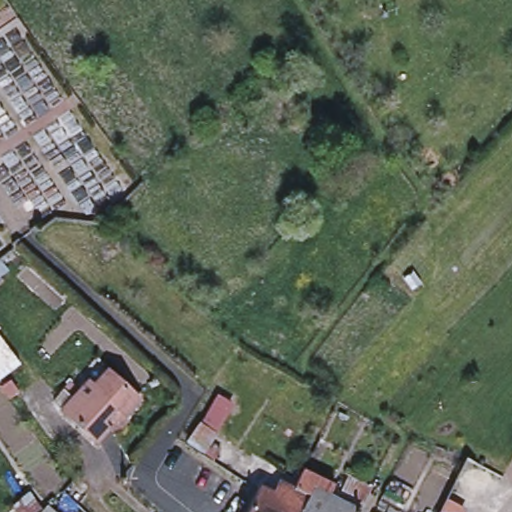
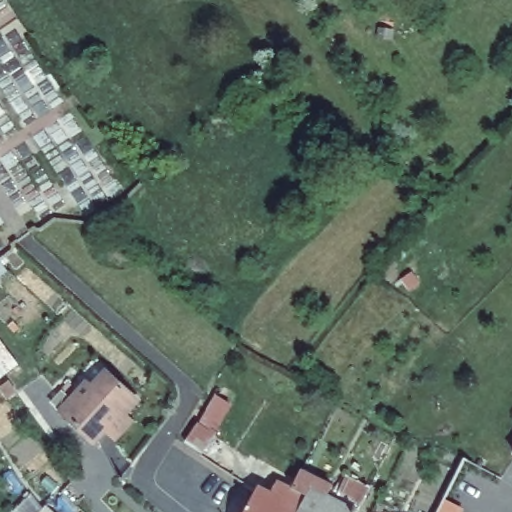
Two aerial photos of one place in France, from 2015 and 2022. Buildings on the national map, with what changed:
unchanged [(0,336),(21,365),(0,384),(0,336)]
unchanged [(97,440),(65,410),(91,381),(96,385),(110,370),(140,397),(125,414),(122,412),(110,426),(97,440)]
unchanged [(200,453),(185,444),(197,424),(212,434),(200,453)]
unchanged [(327,495),(356,510),(355,512),(244,512),(256,488),(271,497),(277,486),(289,492),(296,474),(330,490),(327,495)]
unchanged [(41,508),(51,502),(62,512),(8,512),(29,490),(41,508)]
unchanged [(445,512),(437,512),(439,508),(445,512)]

